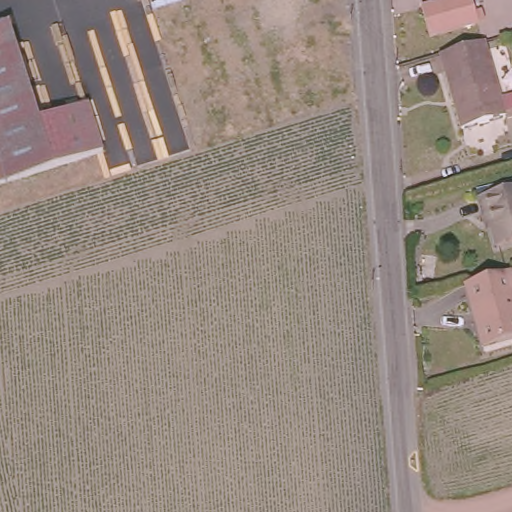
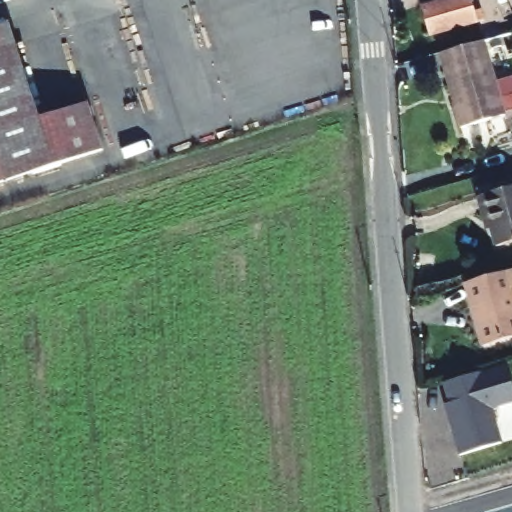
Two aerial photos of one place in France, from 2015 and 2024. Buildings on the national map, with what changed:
unchanged [(474,0),(477,9),(484,6),(487,18),(432,34),(423,1),(428,0),(474,0)]
unchanged [(90,99),(106,150),(0,181),(0,25),(10,21),(42,116),(90,99)]
unchanged [(505,95),(512,93),(512,115),(468,129),(447,50),(489,39),(505,95)]
unchanged [(499,243),(495,231),(492,218),(487,220),(480,193),(512,184),(512,239),(499,243)]
unchanged [(489,348),(471,284),(512,272),(512,340),(489,348)]
new [(445,405),(449,404),(443,383),(505,366),(512,389),(512,403),(491,411),(502,443),(459,457),(445,405)]

